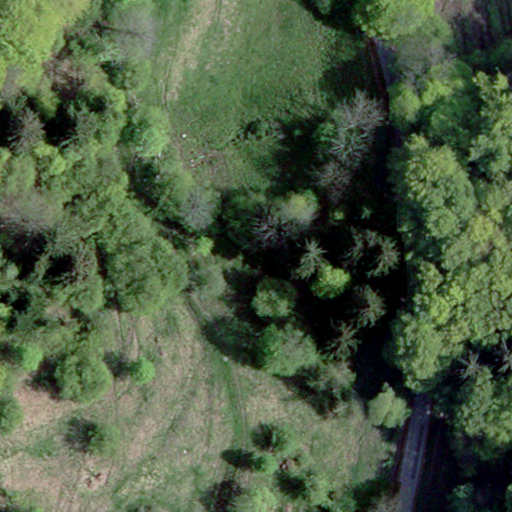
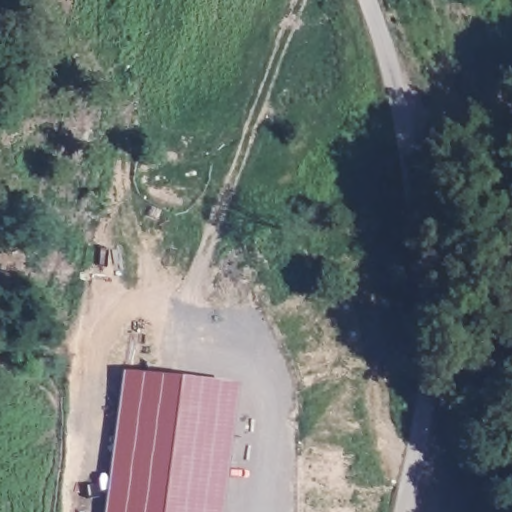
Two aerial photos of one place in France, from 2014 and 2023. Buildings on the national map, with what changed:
new [(237,387),(235,403),(220,512),(108,512),(128,372),(197,382),(237,387)]

